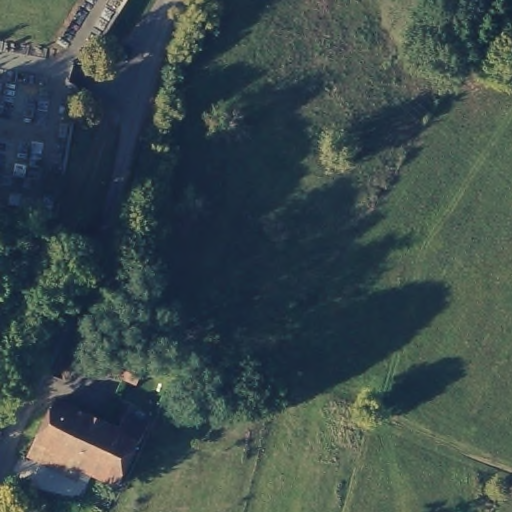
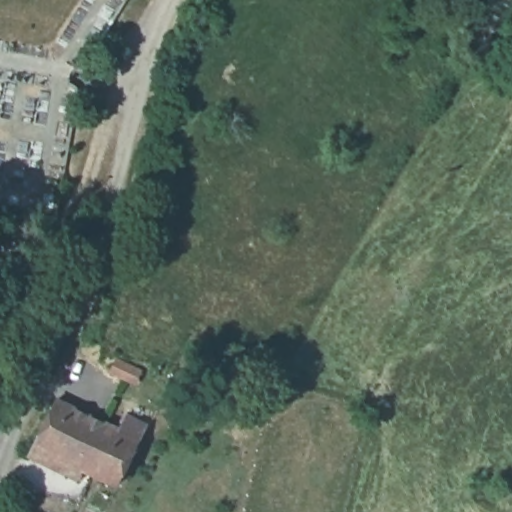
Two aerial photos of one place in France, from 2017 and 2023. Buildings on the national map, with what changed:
unchanged [(107,370),(113,356),(141,371),(134,386),(107,370)]
unchanged [(117,481),(82,465),(85,458),(52,443),(45,458),(30,450),(57,393),(124,425),(130,411),(147,420),(117,481)]

